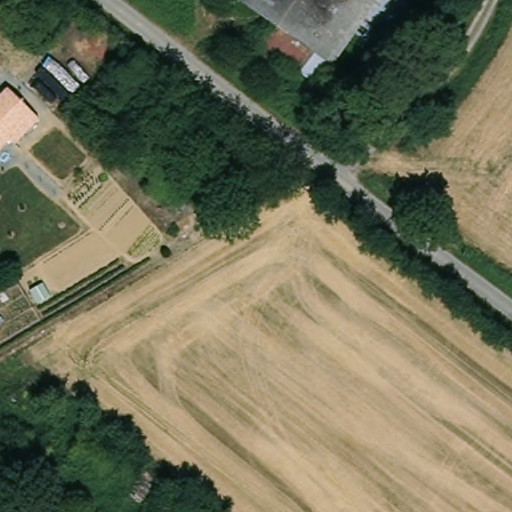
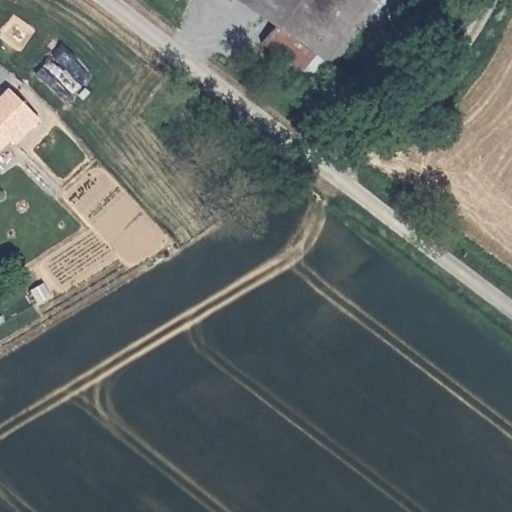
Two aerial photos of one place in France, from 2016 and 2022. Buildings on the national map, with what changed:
unchanged [(259,44),(273,24),(239,0),(417,0),(353,109),(259,44)]
unchanged [(27,130),(27,138),(19,144),(8,140),(0,150),(0,100),(12,88),(42,117),(27,130)]

